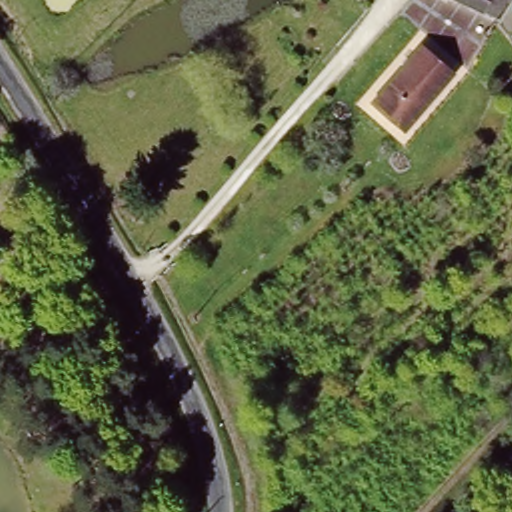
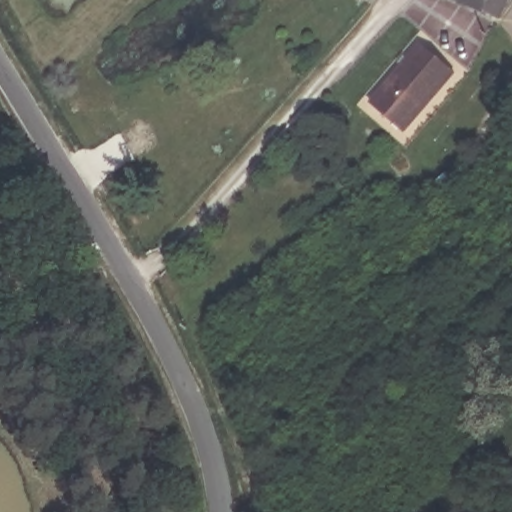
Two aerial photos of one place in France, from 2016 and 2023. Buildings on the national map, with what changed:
unchanged [(454,0),(503,0),(493,22),(478,15),(454,0)]
unchanged [(423,44),(441,63),(386,113),(371,98),(423,44)]
unchanged [(441,63),(454,75),(402,129),(386,113),(441,63)]

